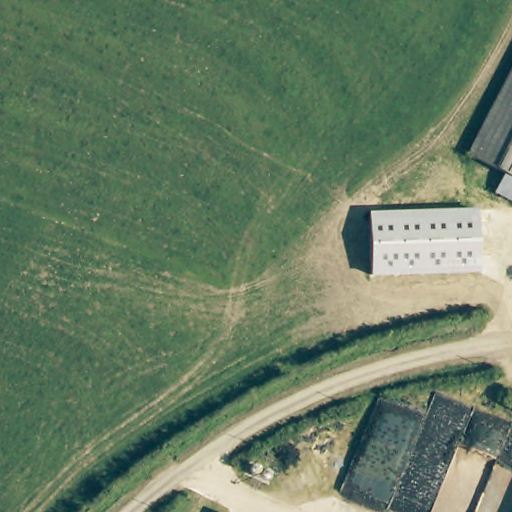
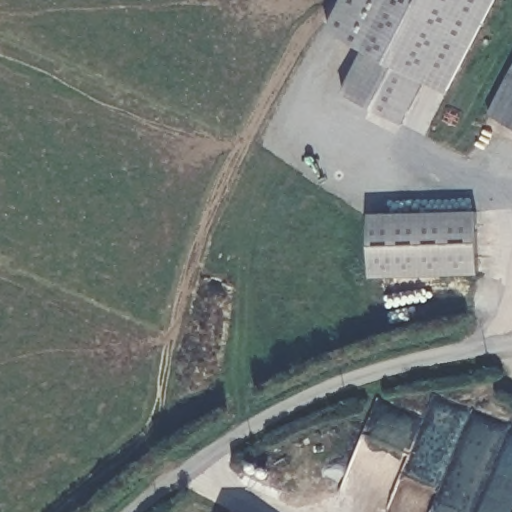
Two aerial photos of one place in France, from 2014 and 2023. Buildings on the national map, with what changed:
new [(363,47),(327,31),(343,0),(495,0),(448,91),(423,79),(401,122),(341,92),(363,47)]
new [(512,65),(512,127),(487,114),(512,65)]
demolished [(512,68),(512,174),(468,151),(512,68)]
unchanged [(371,276),(368,213),(477,210),(479,274),(371,276)]

